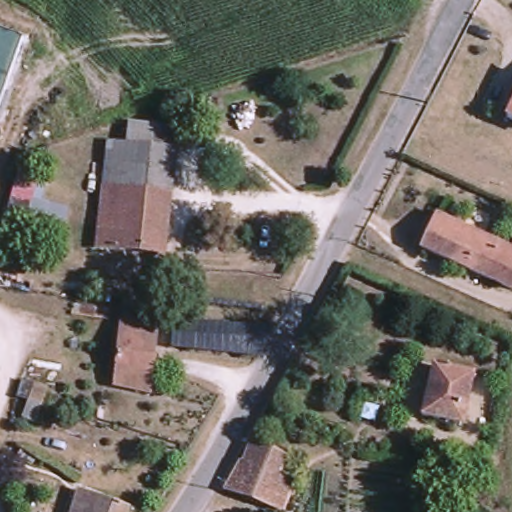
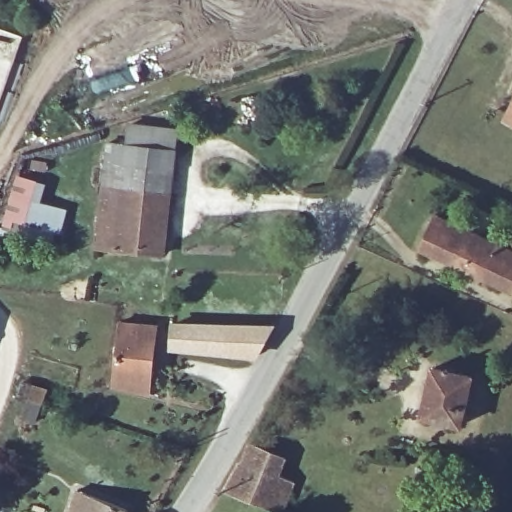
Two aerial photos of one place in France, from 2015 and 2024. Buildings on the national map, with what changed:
unchanged [(512,95),(512,121),(501,116),(512,95)]
unchanged [(105,141),(122,142),(124,128),(172,128),(160,250),(91,244),(105,141)]
new [(14,241),(0,237),(0,230),(17,173),(47,182),(41,200),(68,209),(61,232),(56,231),(53,239),(18,228),(14,241)]
unchanged [(510,247),(512,242),(512,285),(511,287),(417,245),(431,213),(510,247)]
unchanged [(222,324),(219,349),(167,342),(170,320),(222,324)]
unchanged [(141,392),(106,387),(114,321),(149,326),(141,392)]
unchanged [(252,324),(263,324),(254,353),(237,351),(219,349),(222,324),(252,324)]
unchanged [(421,418),(430,368),(462,374),(453,425),(421,418)]
unchanged [(247,442),(278,452),(273,475),(289,480),(277,509),(222,488),(237,462),(247,442)]
unchanged [(124,504),(121,512),(61,512),(70,486),(124,504)]

